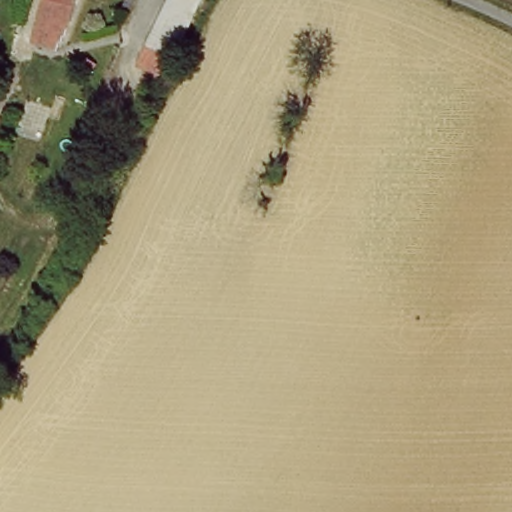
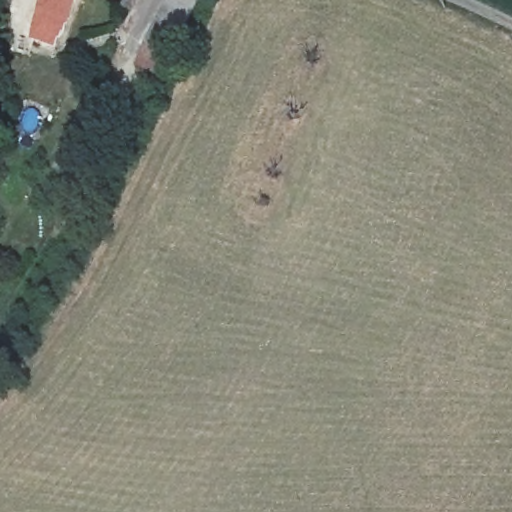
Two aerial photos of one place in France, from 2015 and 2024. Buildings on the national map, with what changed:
unchanged [(65,17),(62,34),(50,46),(29,39),(40,0),(75,0),(70,18),(65,17)]
unchanged [(133,68),(164,0),(200,0),(165,78),(133,68)]

